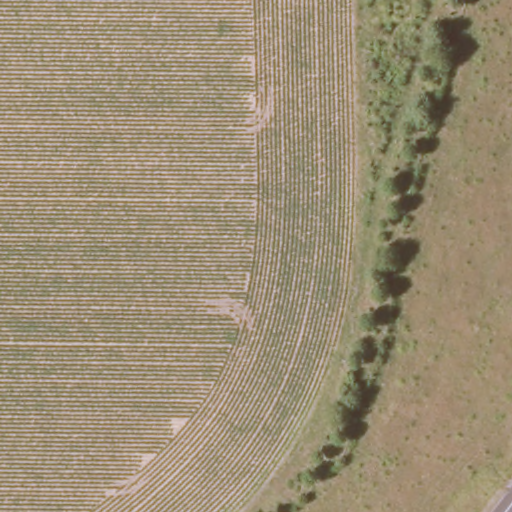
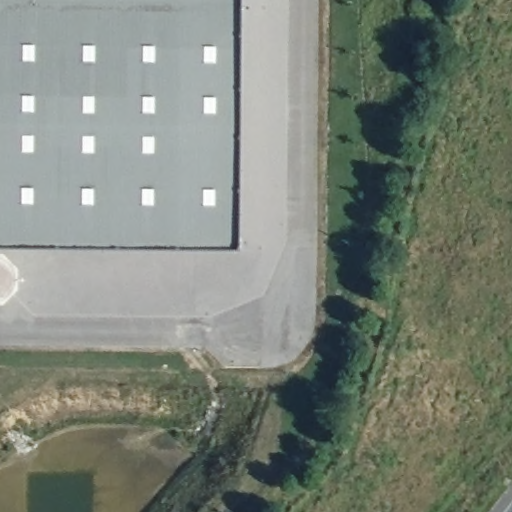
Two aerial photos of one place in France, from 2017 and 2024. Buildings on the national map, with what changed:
new [(244,258),(0,255),(0,0),(247,0),(244,258)]
new [(7,267),(10,269),(12,272),(15,277),(16,281),(17,289),(15,295),(11,301),(8,304),(1,308),(0,309),(0,264),(2,264),(7,267)]

